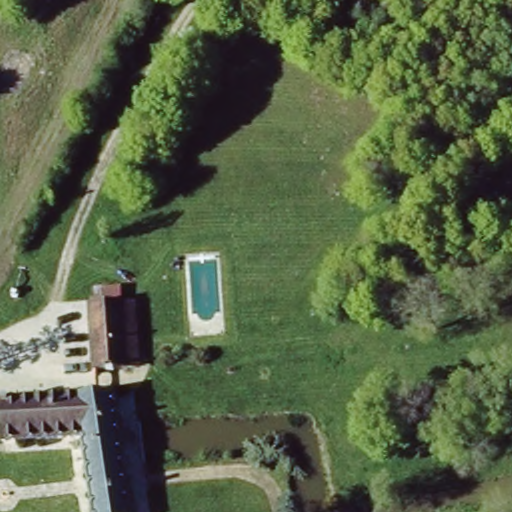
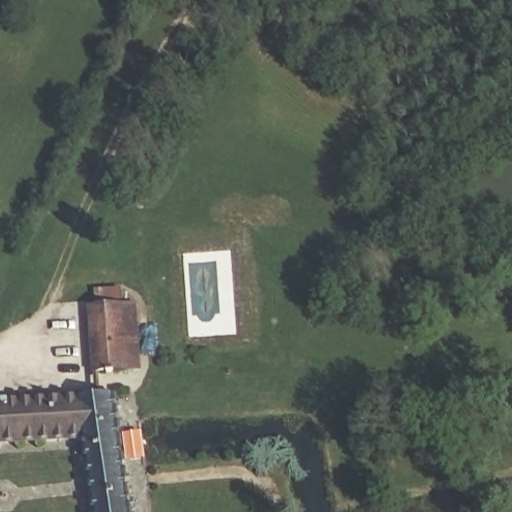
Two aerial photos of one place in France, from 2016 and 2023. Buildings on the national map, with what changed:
unchanged [(138,364),(100,367),(94,305),(133,301),(138,364)]
unchanged [(150,391),(151,411),(90,415),(100,450),(118,446),(134,512),(91,512),(73,440),(0,445),(0,402),(150,391)]

